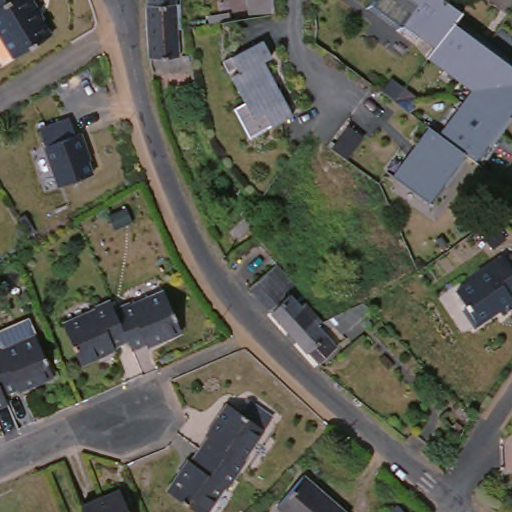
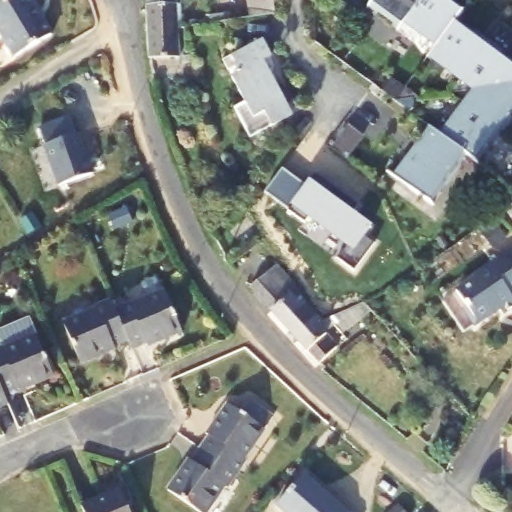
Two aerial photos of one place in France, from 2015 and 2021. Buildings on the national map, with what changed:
unchanged [(39,2),(36,3),(52,30),(16,52),(0,26),(0,0),(37,0),(39,2)]
unchanged [(143,0),(171,0),(171,9),(142,11),(143,0)]
unchanged [(247,0),(274,0),(275,13),(249,17),(247,0)]
unchanged [(466,8),(458,18),(488,42),(512,60),(512,112),(498,130),(474,162),(469,158),(434,204),(396,177),(432,129),(442,137),(465,106),(478,89),(461,77),(430,54),(439,43),(406,19),(398,29),(369,7),(374,0),(455,0),(466,8)]
unchanged [(174,62),(144,64),(142,11),(171,9),(174,62)]
unchanged [(280,52),(268,59),(280,81),(284,79),(301,110),(281,121),(259,133),(244,104),(254,98),(240,72),(249,68),(246,62),(237,67),(232,57),(240,53),(271,36),(280,52)]
unchanged [(179,70),(179,61),(186,61),(186,62),(186,69),(179,70)]
unchanged [(71,116),(77,134),(81,132),(88,148),(85,149),(94,173),(60,185),(39,127),(71,116)]
new [(283,168),(309,181),(314,172),(358,205),(351,210),(372,225),(367,234),(376,243),(356,270),(338,257),(345,244),(308,216),(306,222),(266,191),(283,168)]
unchanged [(512,253),(512,305),(508,308),(504,302),(481,319),(469,302),(471,300),(461,285),(482,270),(481,268),(509,249),(512,253)]
unchanged [(328,343),(311,357),(301,345),(299,346),(288,334),(284,337),(278,329),(281,326),(241,282),(268,260),(284,277),(298,294),(295,297),(311,316),(308,319),(328,343)]
unchanged [(129,306),(129,308),(164,293),(183,334),(164,342),(164,339),(134,352),(130,342),(116,311),(129,306)]
unchanged [(361,306),(333,330),(324,321),(318,325),(314,318),(311,316),(353,297),(361,306)]
unchanged [(99,356),(101,357),(83,366),(66,325),(99,311),(98,308),(113,302),(116,311),(130,342),(99,356)]
unchanged [(0,349),(3,348),(0,342),(0,333),(30,320),(37,337),(54,378),(36,386),(34,383),(5,395),(0,384),(0,349)]
unchanged [(0,409),(0,384),(5,395),(9,405),(0,409)]
unchanged [(219,424),(216,422),(229,405),(239,413),(248,400),(274,419),(244,461),(246,463),(236,475),(200,450),(219,424)]
unchanged [(225,488),(208,512),(197,512),(168,491),(179,474),(182,476),(200,450),(236,475),(228,489),(225,488)]
unchanged [(344,512),(282,512),(277,507),(304,477),(344,512)]
unchanged [(121,490),(130,512),(84,512),(82,507),(121,490)]

